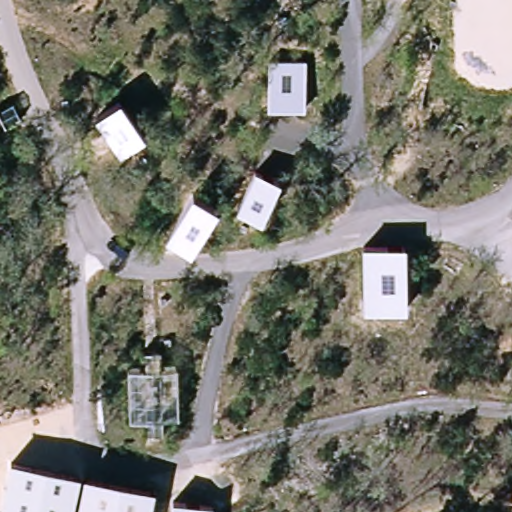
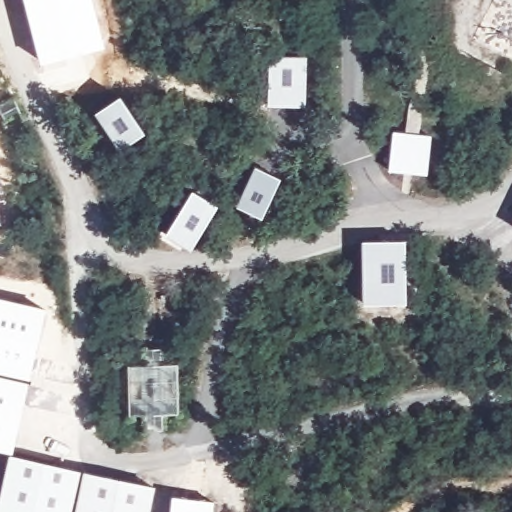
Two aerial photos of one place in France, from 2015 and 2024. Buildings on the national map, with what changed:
new [(106,48),(42,64),(25,0),(94,0),(106,48)]
unchanged [(269,60),(303,61),(301,109),(268,108),(269,60)]
unchanged [(120,96),(143,131),(121,146),(97,112),(120,96)]
new [(432,136),(428,175),(391,171),(394,132),(432,136)]
unchanged [(237,209),(254,171),(277,182),(260,219),(237,209)]
unchanged [(171,232),(198,190),(220,204),(194,246),(171,232)]
new [(0,224),(0,210),(2,224),(0,224)]
unchanged [(407,239),(409,304),(364,305),(363,240),(407,239)]
new [(0,298),(48,309),(30,380),(0,373),(0,298)]
unchanged [(140,436),(139,417),(125,418),(123,401),(110,401),(109,386),(125,385),(125,370),(140,369),(140,358),(155,356),(155,370),(170,369),(171,385),(186,385),(188,401),(170,403),(170,417),(155,418),(155,435),(140,436)]
new [(14,453),(0,450),(0,376),(30,382),(14,453)]
unchanged [(0,512),(0,501),(10,454),(80,471),(70,512),(0,512)]
unchanged [(152,512),(78,512),(86,472),(157,486),(152,512)]
unchanged [(213,503),(213,512),(172,512),(173,500),(213,503)]

